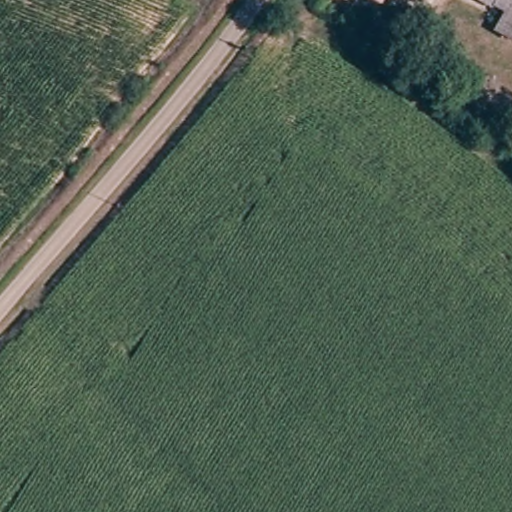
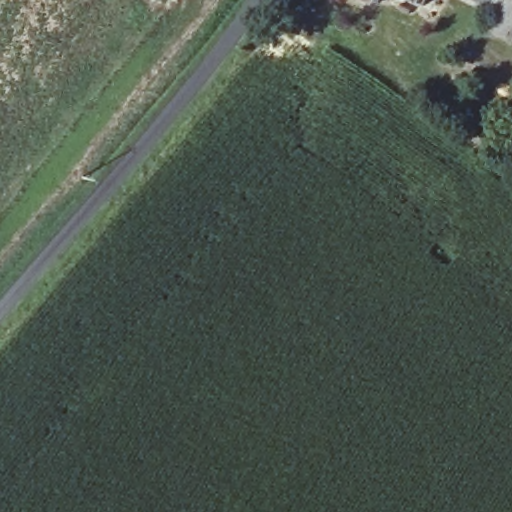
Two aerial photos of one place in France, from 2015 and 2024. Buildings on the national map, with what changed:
unchanged [(512,0),(512,12),(487,0),(512,0)]

